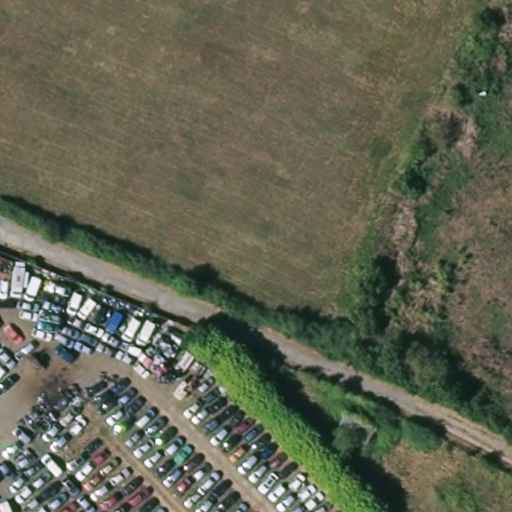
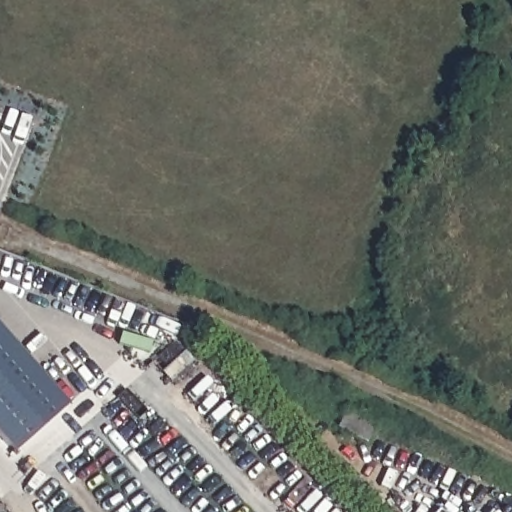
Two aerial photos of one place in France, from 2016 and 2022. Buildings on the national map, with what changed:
new [(4,459),(0,455),(0,338),(61,407),(4,459)]
unchanged [(364,442),(334,430),(340,416),(369,429),(364,442)]

